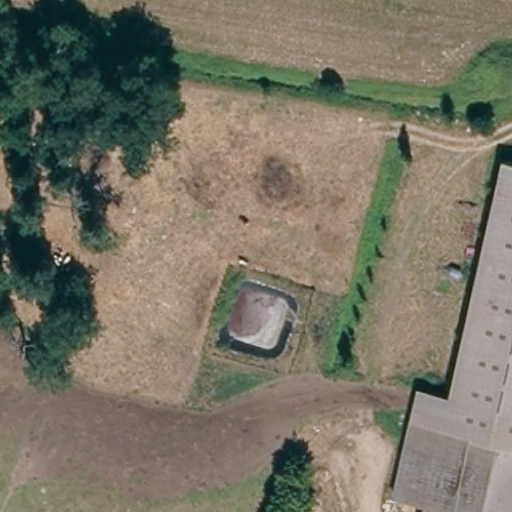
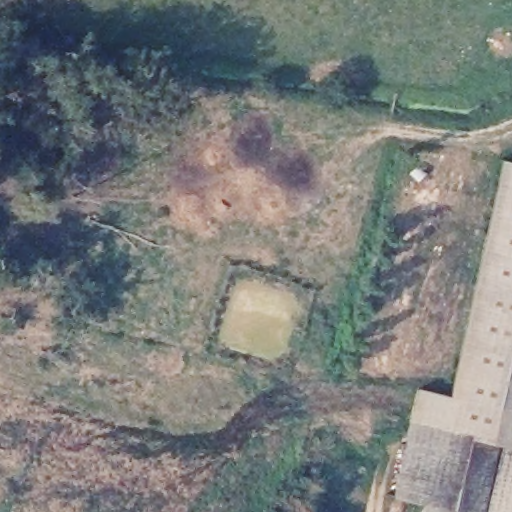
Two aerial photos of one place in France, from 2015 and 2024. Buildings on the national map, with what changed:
unchanged [(494,445),(409,426),(416,402),(450,409),(503,172),(512,174),(512,512),(480,512),(494,445)]
unchanged [(409,426),(494,445),(480,512),(448,512),(426,507),(393,500),(409,426)]
unchanged [(426,507),(448,512),(425,512),(426,507)]

